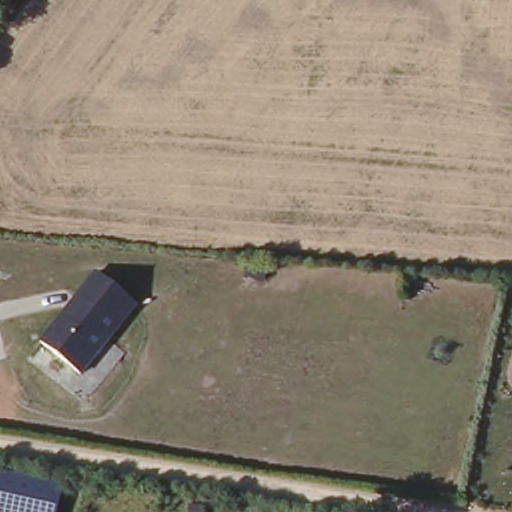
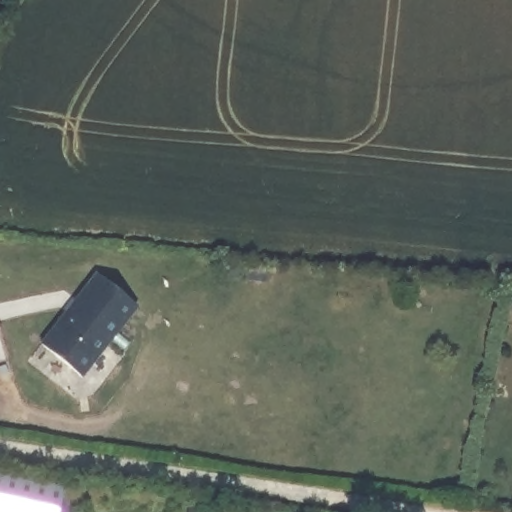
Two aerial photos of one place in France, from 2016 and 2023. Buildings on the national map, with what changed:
unchanged [(92,272),(133,303),(79,375),(38,345),(92,272)]
unchanged [(0,512),(0,467),(64,480),(57,512),(0,512)]

